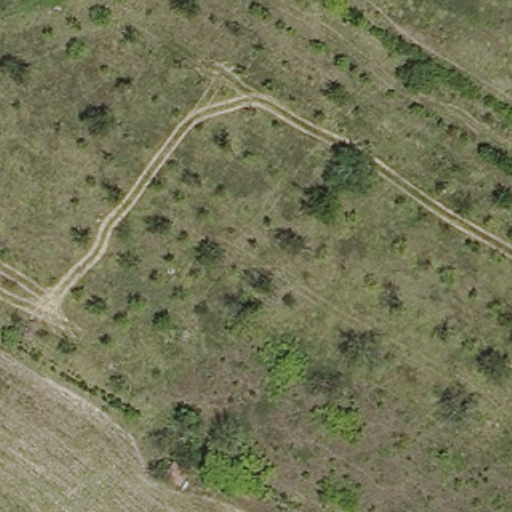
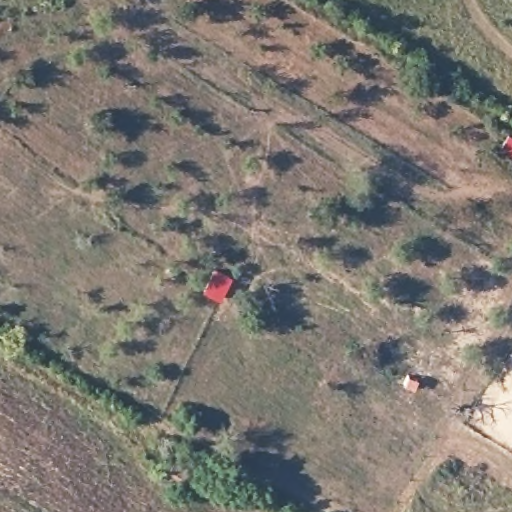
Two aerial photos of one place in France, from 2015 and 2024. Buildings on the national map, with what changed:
unchanged [(192,477),(183,489),(158,474),(166,461),(192,477)]

